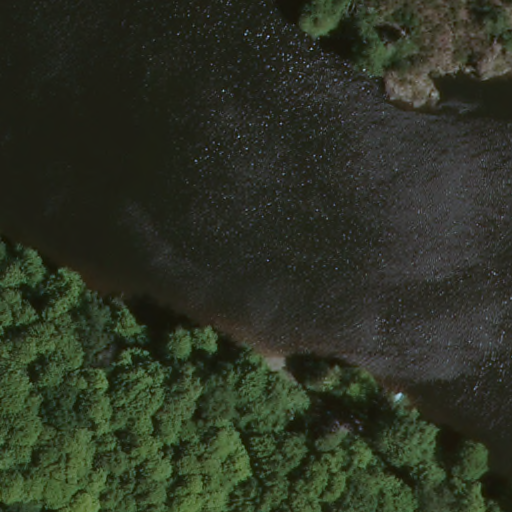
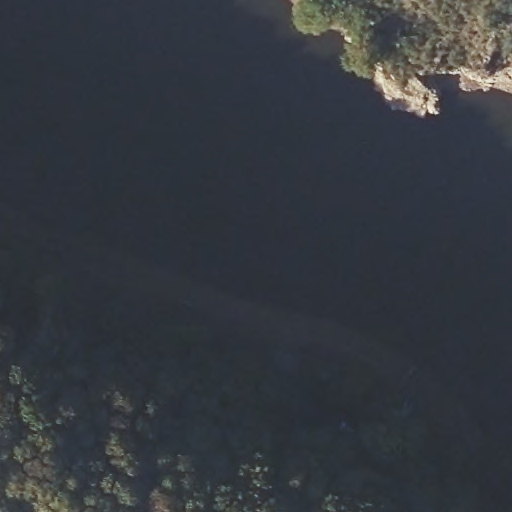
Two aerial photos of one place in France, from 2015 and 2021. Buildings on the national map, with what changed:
unchanged [(12,507),(15,501),(8,499),(11,490),(19,492),(26,474),(32,476),(50,482),(38,512),(25,512),(15,508),(12,507)]

